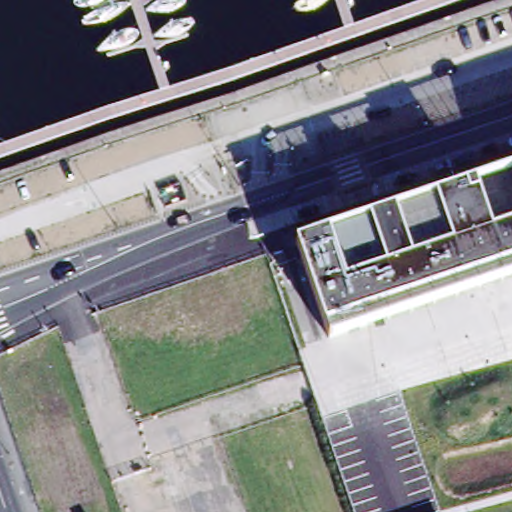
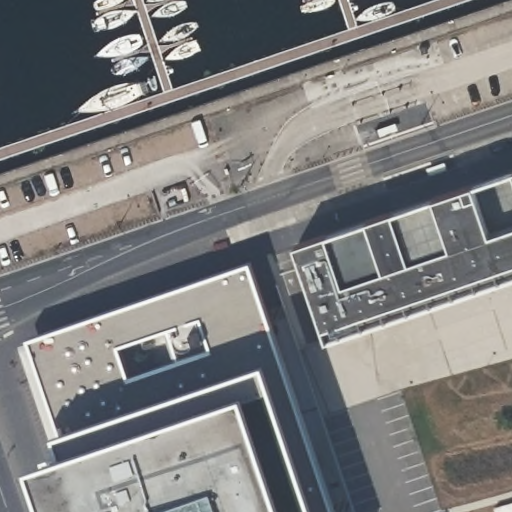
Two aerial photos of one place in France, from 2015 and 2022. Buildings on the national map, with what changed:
unchanged [(335,338),(303,245),(512,174),(512,278),(335,338)]
new [(250,263),(335,512),(294,512),(251,389),(69,450),(61,429),(29,339),(250,263)]
new [(251,389),(294,512),(55,512),(38,461),(69,450),(251,389)]

